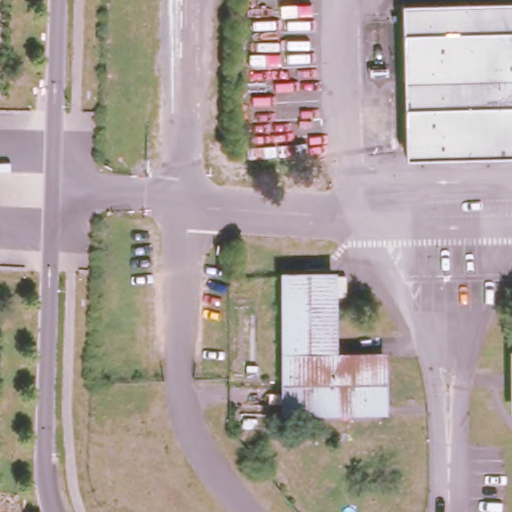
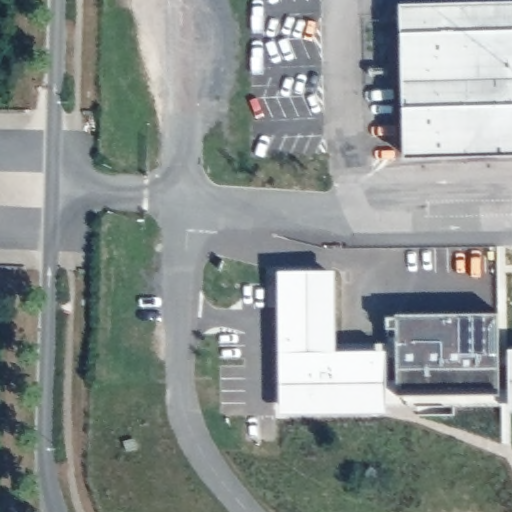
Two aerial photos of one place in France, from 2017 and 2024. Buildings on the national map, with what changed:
unchanged [(512,146),(404,149),(401,0),(512,0),(512,146)]
unchanged [(281,268),(327,268),(327,349),(379,348),(378,401),(282,402),(281,268)]
new [(500,395),(395,395),(395,329),(386,328),(386,316),(396,316),(396,313),(498,313),(500,395)]
demolished [(511,510),(512,512),(473,512),(473,510),(511,510)]

